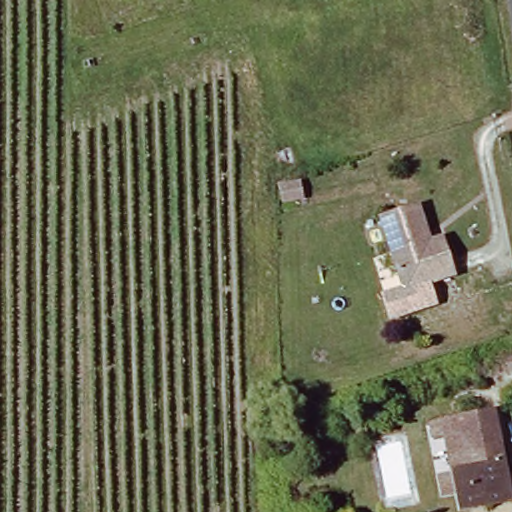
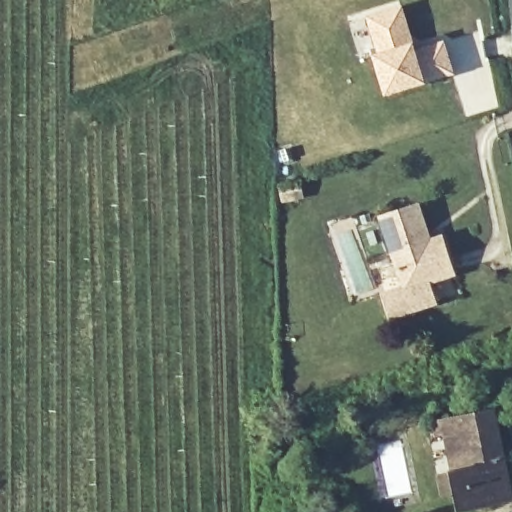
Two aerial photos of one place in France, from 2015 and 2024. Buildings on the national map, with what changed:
new [(401,8),(413,45),(415,52),(443,44),(453,75),(385,95),(374,57),(378,55),(367,18),(395,10),(401,8)]
unchanged [(398,289),(377,216),(415,204),(425,241),(438,237),(447,272),(398,289)]
unchanged [(449,512),(440,473),(460,468),(451,432),(422,437),(420,426),(484,410),(503,500),(455,512),(449,512)]

